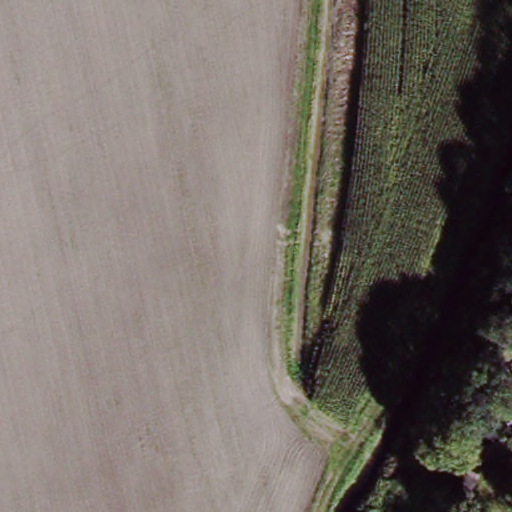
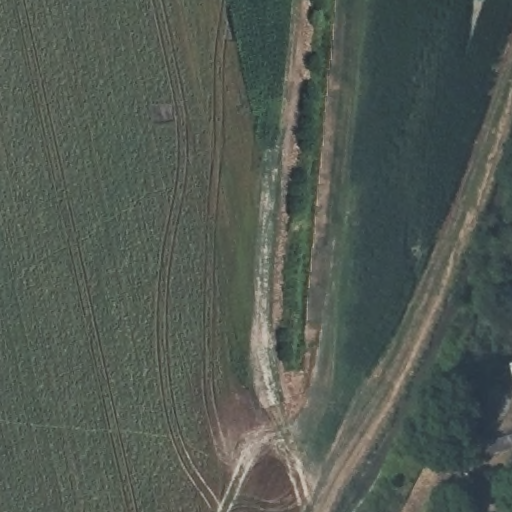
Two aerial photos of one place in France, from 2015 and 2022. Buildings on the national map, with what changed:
unchanged [(502,388),(494,361),(512,358),(512,386),(502,388)]

